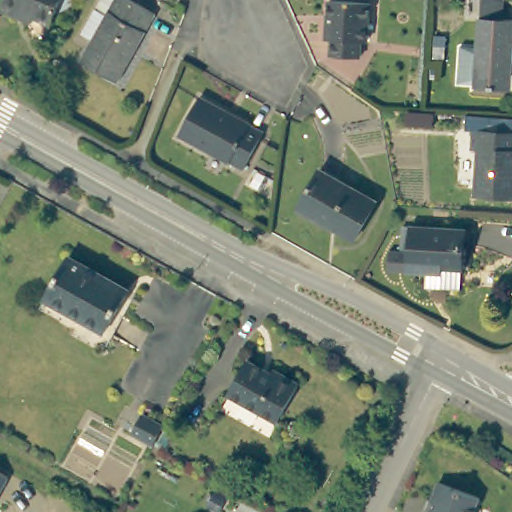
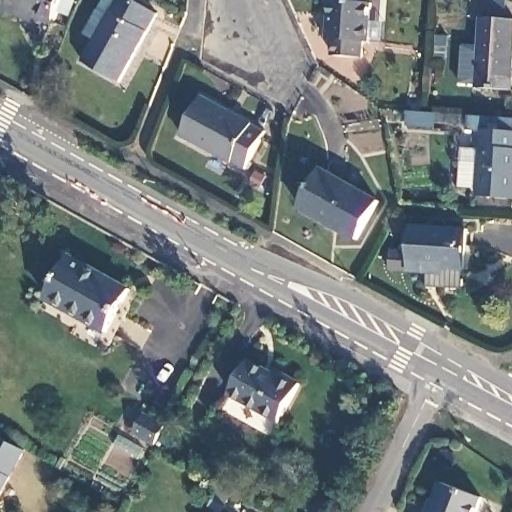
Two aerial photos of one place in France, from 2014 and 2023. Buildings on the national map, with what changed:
unchanged [(0,9),(0,0),(62,0),(53,24),(34,17),(31,22),(17,16),(0,9)]
unchanged [(101,0),(130,0),(156,15),(120,82),(81,62),(93,41),(83,36),(101,0)]
unchanged [(330,4),(370,7),(368,44),(361,44),(360,61),(332,59),(333,42),(328,42),(330,4)]
unchanged [(508,12),(503,82),(469,80),(474,11),(508,12)]
unchanged [(181,135),(201,97),(264,132),(244,169),(181,135)]
unchanged [(512,130),(512,194),(477,192),(481,146),(473,145),(474,127),(512,130)]
unchanged [(297,210),(300,205),(321,167),(377,196),(356,234),(337,224),(333,229),(297,210)]
unchanged [(473,247),(471,269),(465,268),(465,287),(430,285),(430,272),(391,270),(392,250),(403,250),(404,227),(413,227),(469,230),(468,246),(473,247)]
unchanged [(131,289),(103,341),(35,303),(41,294),(65,252),(124,285),(131,289)]
unchanged [(229,394),(248,361),(272,374),(274,370),(299,384),(279,422),(229,394)]
unchanged [(162,427),(151,447),(128,435),(140,414),(162,427)]
new [(0,437),(26,452),(12,477),(0,471),(0,437)]
unchanged [(0,497),(0,471),(12,477),(0,497)]
unchanged [(473,512),(422,512),(425,507),(429,497),(433,497),(439,481),(480,495),(473,512)]

